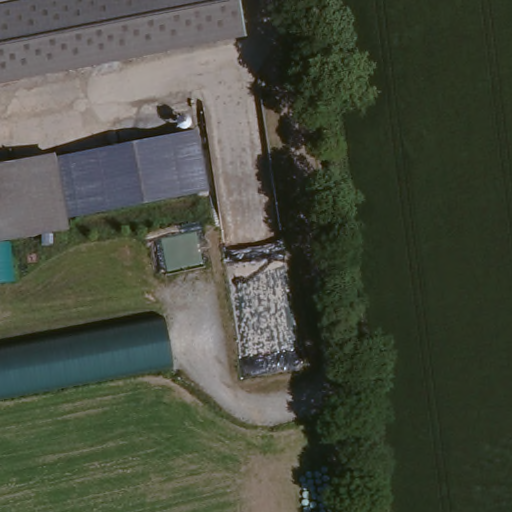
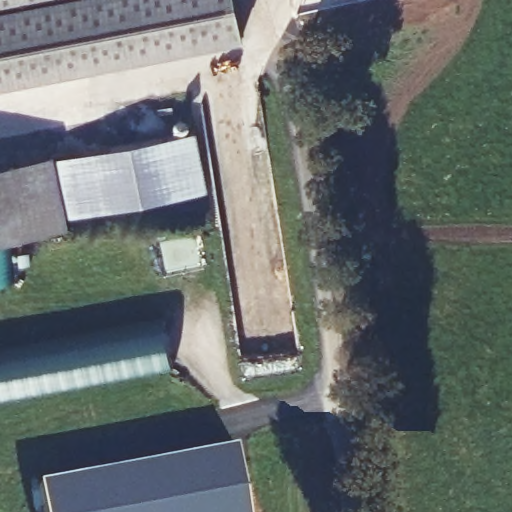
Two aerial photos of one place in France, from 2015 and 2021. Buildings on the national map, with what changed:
unchanged [(0,87),(0,0),(228,0),(235,46),(0,87)]
unchanged [(194,140),(203,201),(61,224),(51,164),(194,140)]
unchanged [(0,244),(0,168),(50,159),(51,164),(61,224),(63,234),(0,244)]
new [(15,283),(0,285),(0,244),(8,243),(15,283)]
unchanged [(173,367),(0,398),(0,351),(164,322),(173,367)]
new [(241,449),(252,512),(49,512),(44,485),(241,449)]

